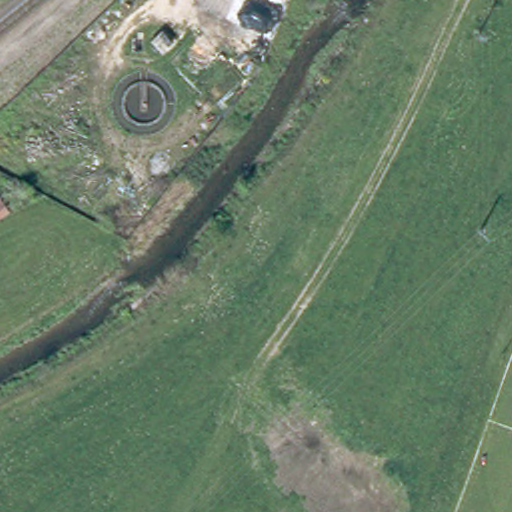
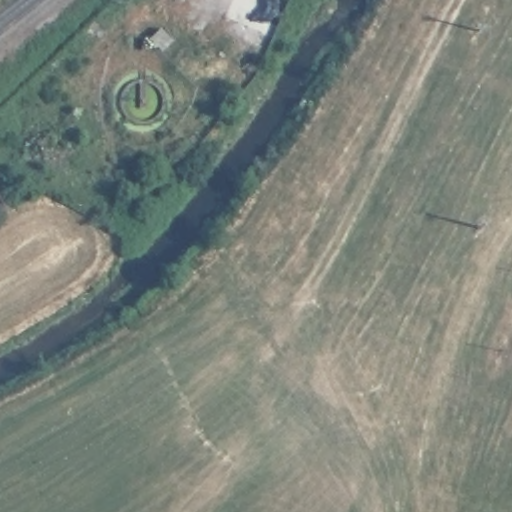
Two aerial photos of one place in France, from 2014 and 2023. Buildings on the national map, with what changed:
unchanged [(180,42),(170,52),(159,41),(169,31),(180,42)]

